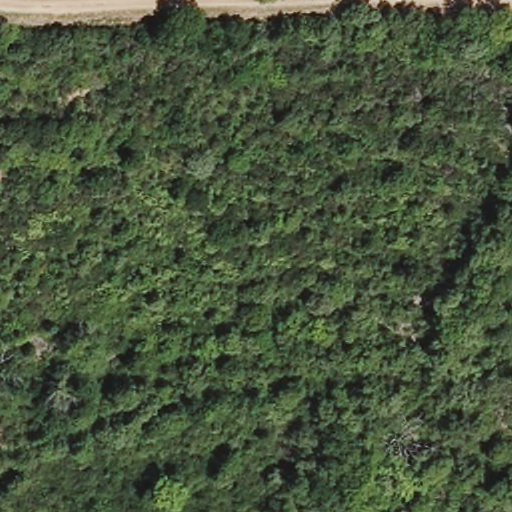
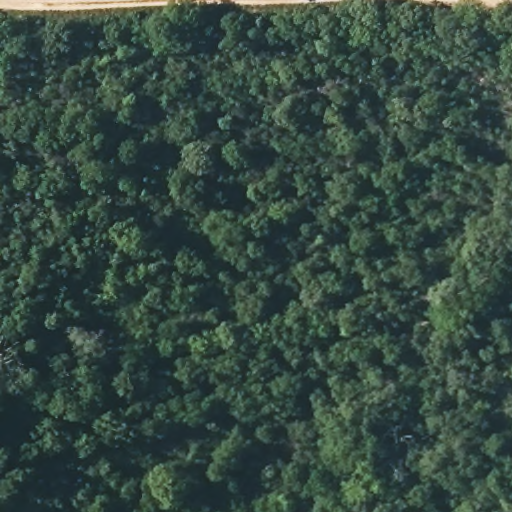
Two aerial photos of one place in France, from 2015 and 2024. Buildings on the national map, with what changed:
unchanged [(0,179),(0,165),(3,165),(5,179),(0,179)]

